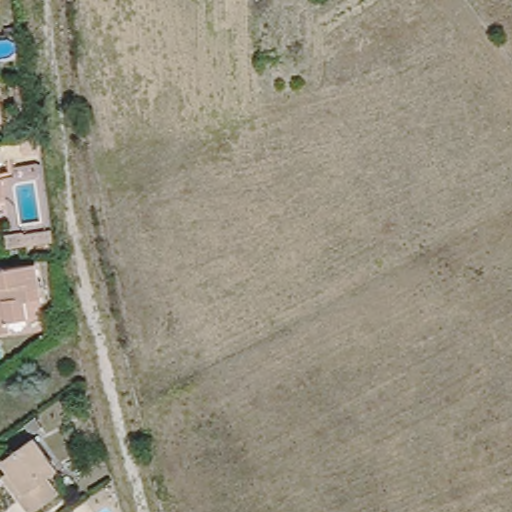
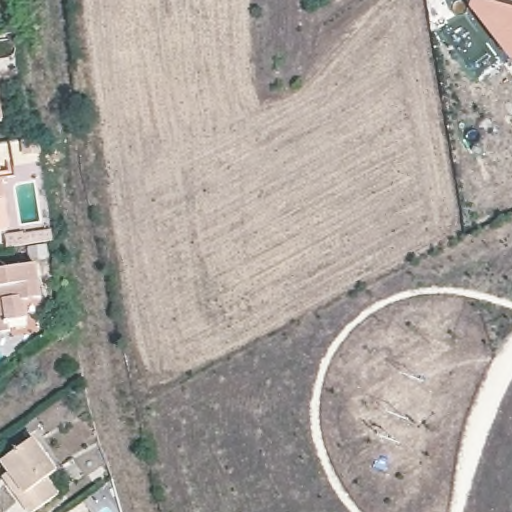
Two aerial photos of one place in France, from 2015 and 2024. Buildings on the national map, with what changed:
new [(511,60),(470,7),(473,0),(512,0),(512,61),(511,60)]
unchanged [(0,121),(0,99),(3,120),(0,121)]
unchanged [(37,150),(27,152),(25,142),(36,141),(37,150)]
unchanged [(0,205),(0,176),(5,204),(0,205)]
unchanged [(28,323),(7,326),(9,336),(0,337),(0,273),(37,268),(42,302),(25,304),(28,323)]
unchanged [(33,430),(30,425),(42,417),(45,422),(33,430)]
unchanged [(65,493),(40,512),(35,512),(22,494),(8,475),(14,471),(7,460),(38,437),(62,470),(53,477),(56,482),(65,493)]

